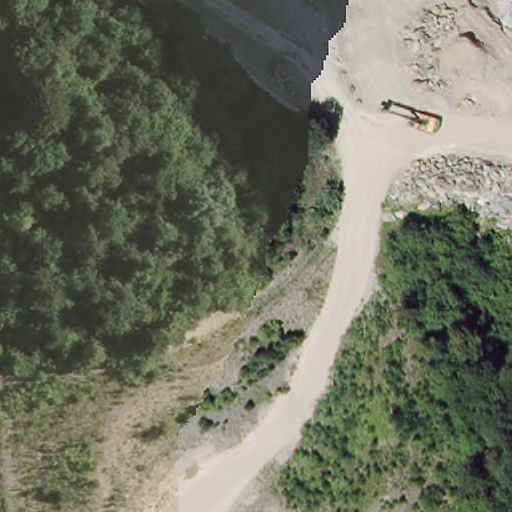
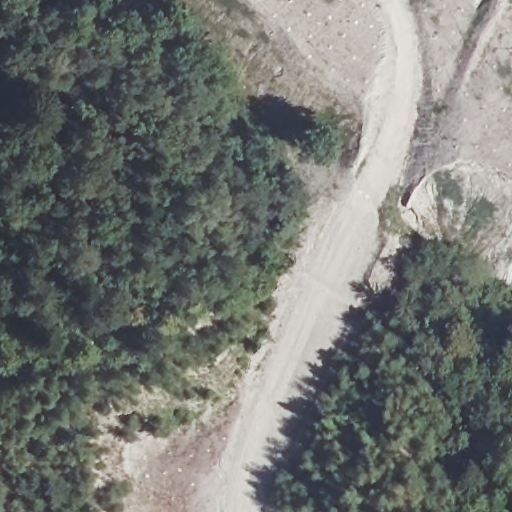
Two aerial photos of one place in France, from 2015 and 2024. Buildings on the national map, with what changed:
[]

